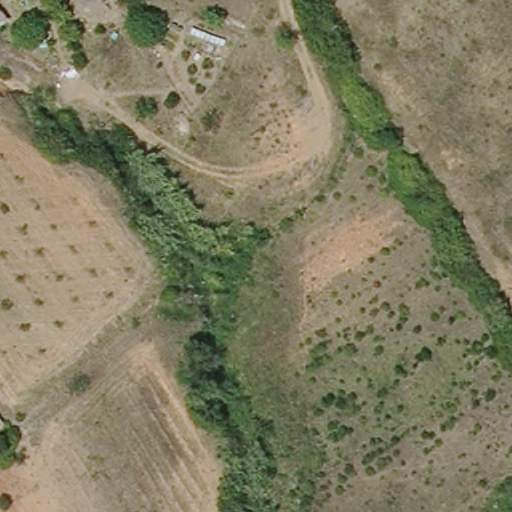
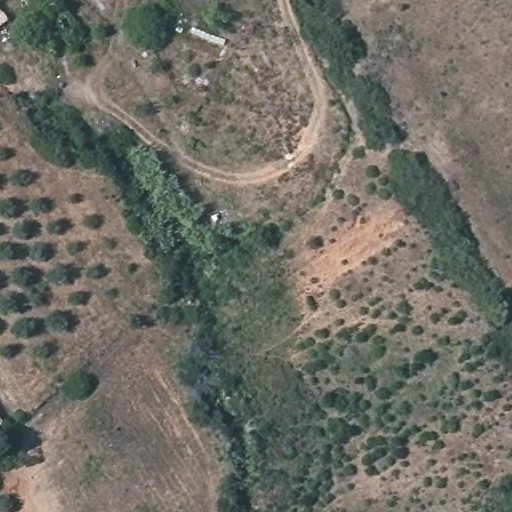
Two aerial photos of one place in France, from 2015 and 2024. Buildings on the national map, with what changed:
unchanged [(0,28),(0,8),(4,8),(3,29),(0,28)]

